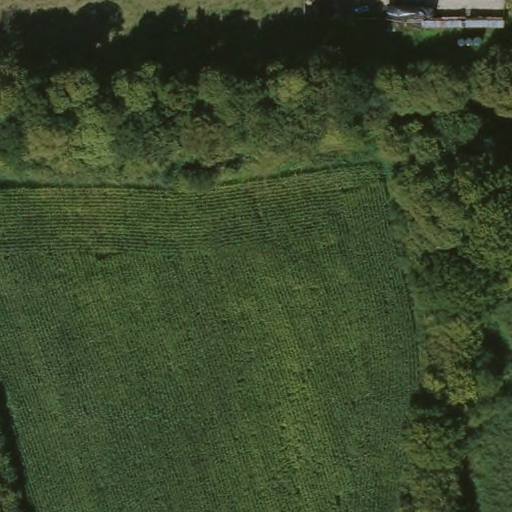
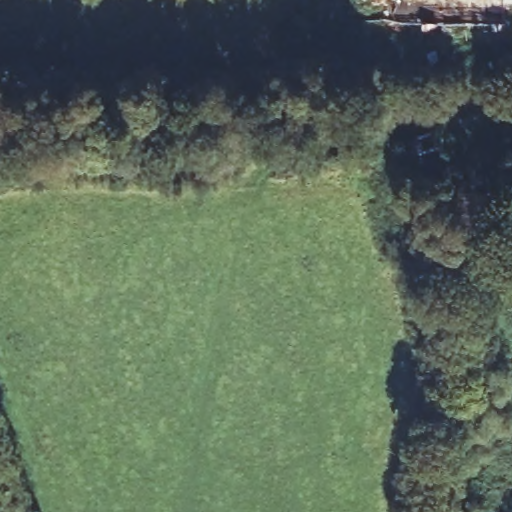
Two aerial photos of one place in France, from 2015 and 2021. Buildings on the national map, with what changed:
unchanged [(512,1),(493,2),(493,0),(512,0),(512,1)]

